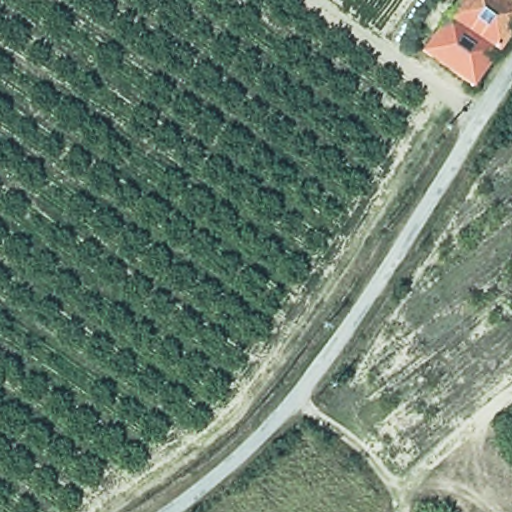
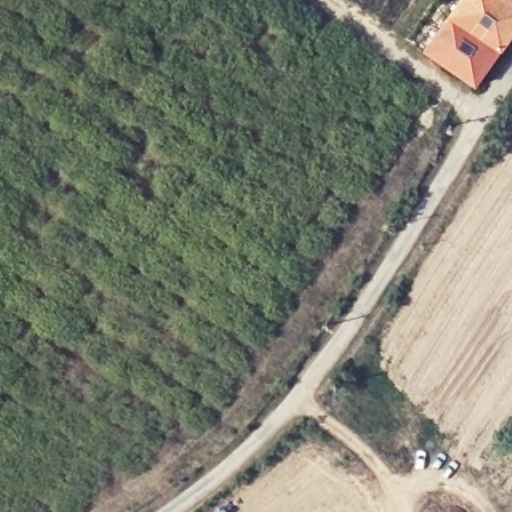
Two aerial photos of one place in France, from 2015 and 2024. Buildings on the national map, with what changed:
unchanged [(460,0),(512,0),(512,36),(477,86),(425,51),(460,0)]

